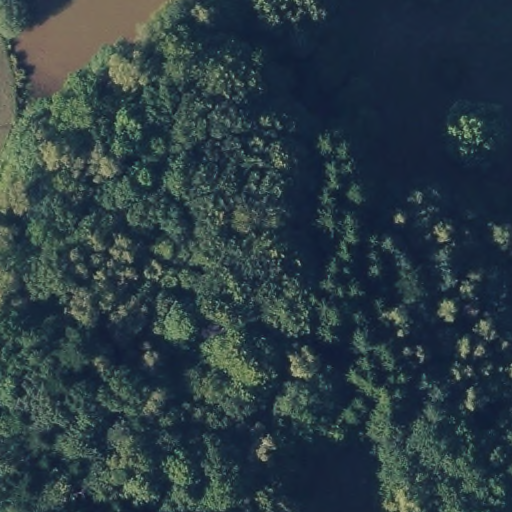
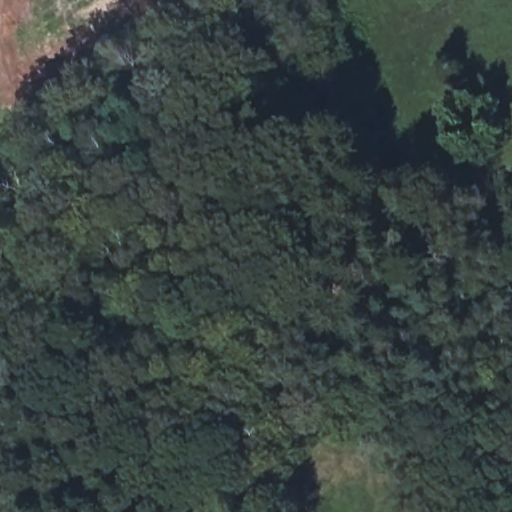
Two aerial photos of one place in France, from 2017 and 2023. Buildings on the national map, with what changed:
[]

